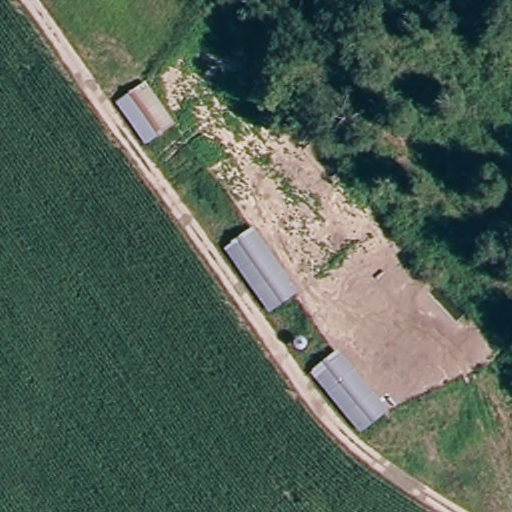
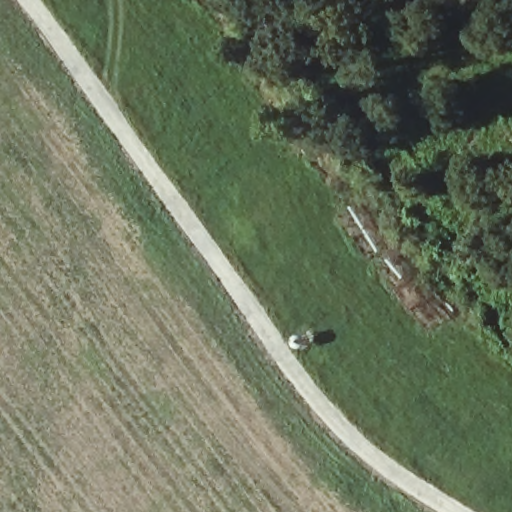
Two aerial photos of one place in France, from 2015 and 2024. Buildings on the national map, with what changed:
demolished [(144,145),(111,102),(142,83),(170,123),(144,145)]
demolished [(268,313),(221,250),(251,228),(296,293),(268,313)]
demolished [(358,432),(307,370),(337,350),(386,409),(358,432)]

